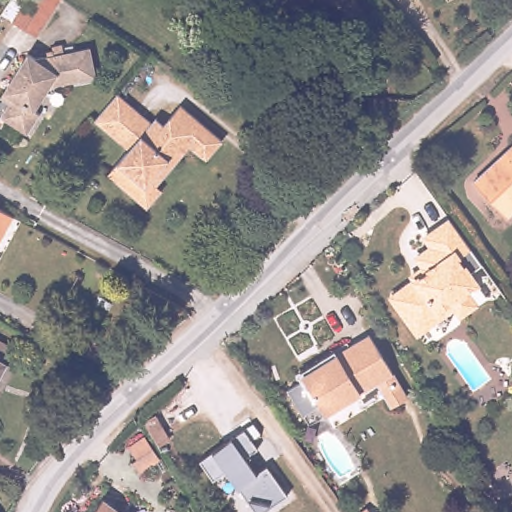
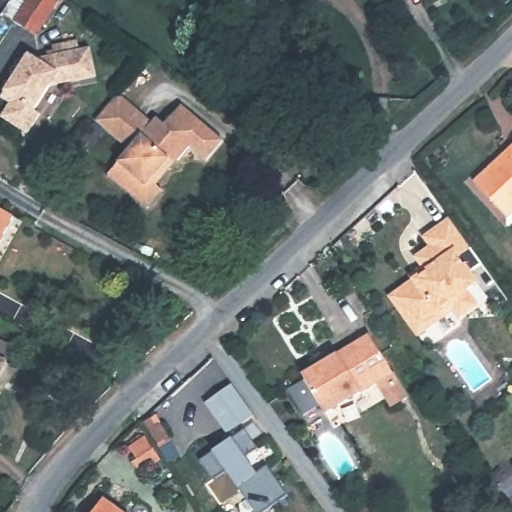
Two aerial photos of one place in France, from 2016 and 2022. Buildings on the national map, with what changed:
unchanged [(9,0),(57,0),(44,22),(21,7),(9,0)]
unchanged [(97,79),(51,87),(36,111),(41,114),(28,135),(3,117),(15,99),(6,92),(30,55),(38,60),(57,57),(56,47),(66,46),(67,55),(93,51),(97,79)]
unchanged [(166,188),(150,205),(125,183),(111,171),(134,146),(100,116),(123,91),(156,120),(161,114),(169,121),(186,102),(227,139),(211,157),(195,142),(181,157),(159,182),(166,188)]
unchanged [(511,217),(478,182),(512,150),(512,217),(511,217)]
unchanged [(0,205),(19,216),(0,246),(0,245),(0,205)]
unchanged [(463,313),(456,305),(420,332),(393,297),(429,270),(419,257),(433,246),(425,237),(451,217),(473,245),(459,256),(478,281),(466,290),(477,303),(463,313)]
unchanged [(395,406),(379,382),(330,413),(305,375),(372,333),(395,372),(410,396),(395,406)]
unchanged [(0,378),(0,354),(10,360),(0,378)]
unchanged [(306,416),(290,390),(307,378),(323,403),(306,416)]
new [(235,387),(256,417),(229,436),(208,406),(235,387)]
unchanged [(264,512),(257,512),(240,487),(227,471),(215,480),(202,461),(214,452),(234,438),(246,430),(259,449),(248,457),(259,473),(268,467),(288,494),(264,512)]
unchanged [(141,467),(134,456),(140,452),(134,442),(149,432),(161,455),(141,467)]
unchanged [(107,497),(129,512),(96,512),(107,497)]
unchanged [(9,512),(0,512),(0,500),(3,502),(9,512)]

